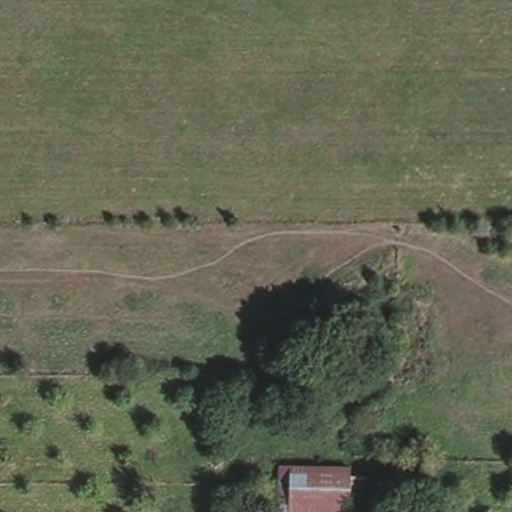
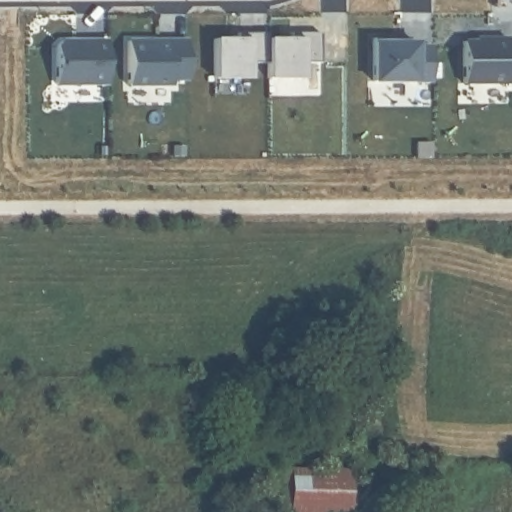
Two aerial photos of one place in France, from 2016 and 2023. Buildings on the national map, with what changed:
new [(302,80),(266,80),(266,38),(293,38),(292,31),(320,31),(320,60),(302,60),(302,80)]
new [(506,46),(512,45),(512,83),(508,84),(462,84),(462,37),(506,35),(506,46)]
new [(107,84),(55,85),(56,47),(64,37),(107,38),(107,84)]
new [(170,41),(185,40),(186,75),(170,75),(170,86),(128,86),(127,41),(170,41)]
new [(418,82),(369,83),(371,41),(418,40),(432,42),(432,79),(418,79),(418,82)]
new [(212,52),(244,51),(245,44),(266,44),(266,66),(252,66),(251,92),(210,92),(212,52)]
unchanged [(351,470),(352,512),(279,512),(280,470),(351,470)]

